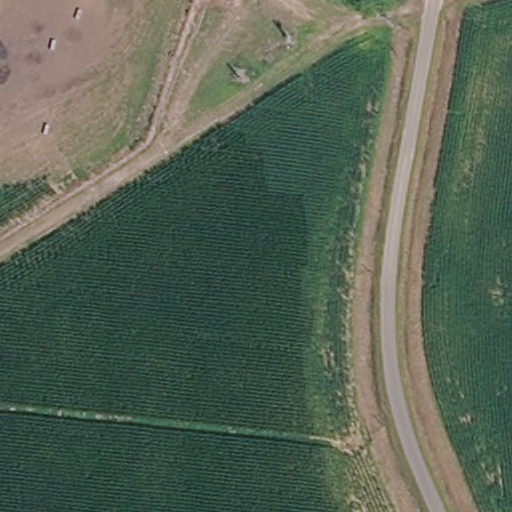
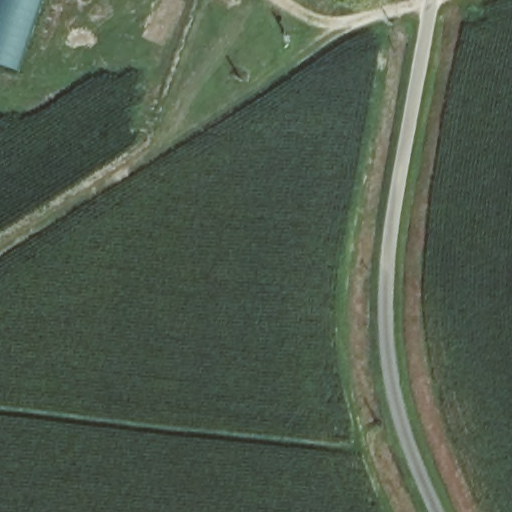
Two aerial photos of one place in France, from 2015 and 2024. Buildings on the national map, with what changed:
new [(20,72),(0,65),(0,0),(45,0),(20,72)]

